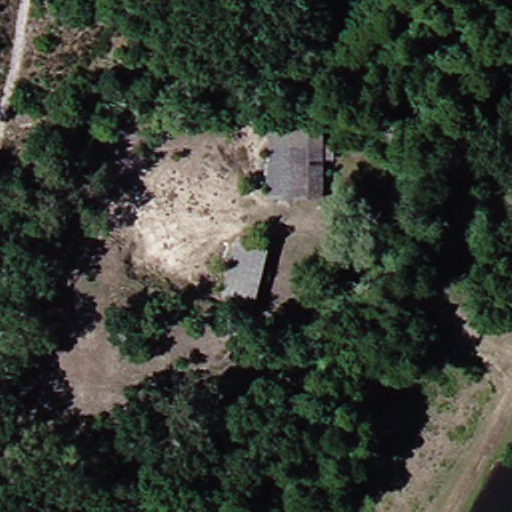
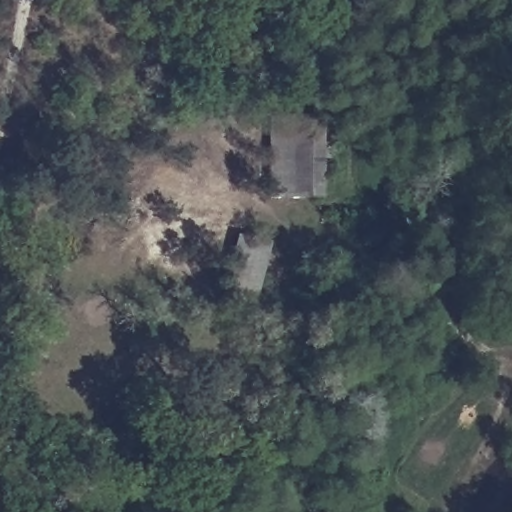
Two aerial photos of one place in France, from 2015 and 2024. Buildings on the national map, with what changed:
unchanged [(261,113),(315,113),(314,142),(323,142),(323,157),(314,157),(313,192),(260,192),(261,113)]
unchanged [(211,299),(225,232),(260,239),(244,305),(211,299)]

